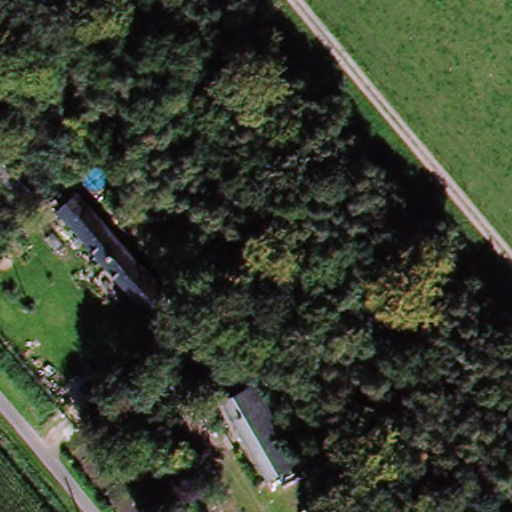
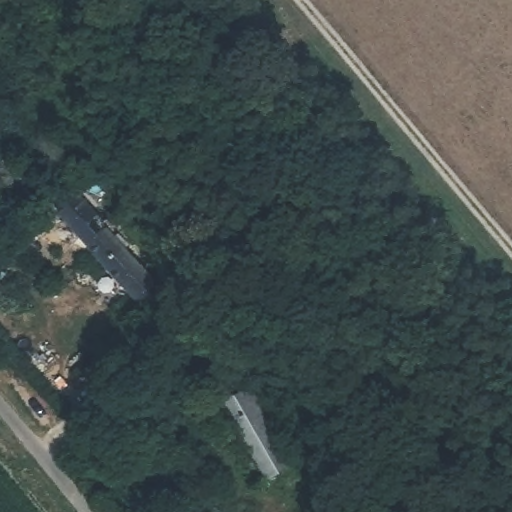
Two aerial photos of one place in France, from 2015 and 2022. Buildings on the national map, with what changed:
unchanged [(21,200),(0,177),(0,157),(7,150),(40,183),(21,200)]
unchanged [(60,212),(80,194),(170,297),(149,312),(60,212)]
unchanged [(243,405),(224,369),(234,364),(251,356),(268,391),(306,466),(298,470),(287,477),(267,487),(229,412),(243,405)]

